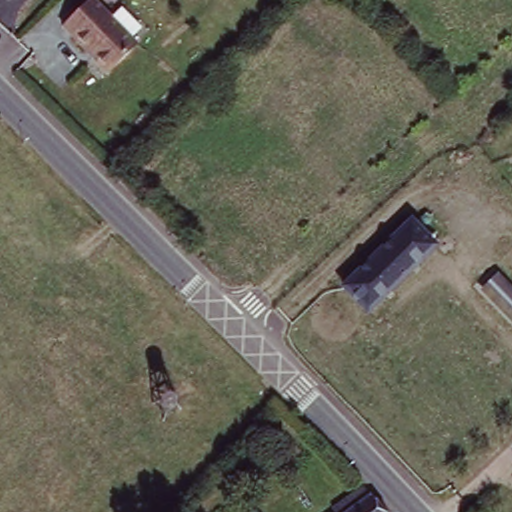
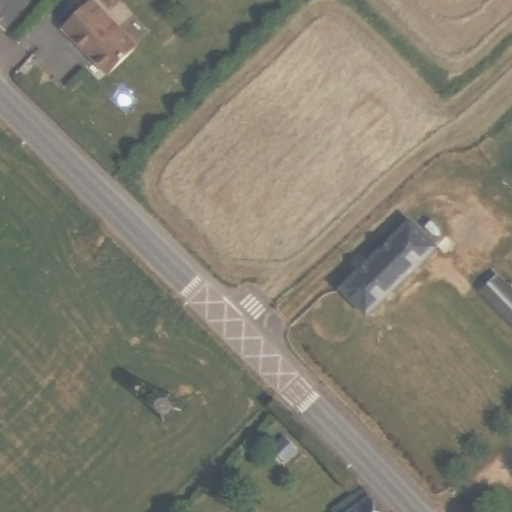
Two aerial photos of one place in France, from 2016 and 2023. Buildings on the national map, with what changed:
unchanged [(91,0),(100,0),(139,41),(106,75),(61,28),(91,0)]
unchanged [(336,286),(427,205),(449,230),(433,245),(438,251),(366,317),(336,286)]
unchanged [(498,275),(512,289),(512,317),(485,288),(498,275)]
unchanged [(368,486),(387,512),(339,512),(337,510),(368,486)]

